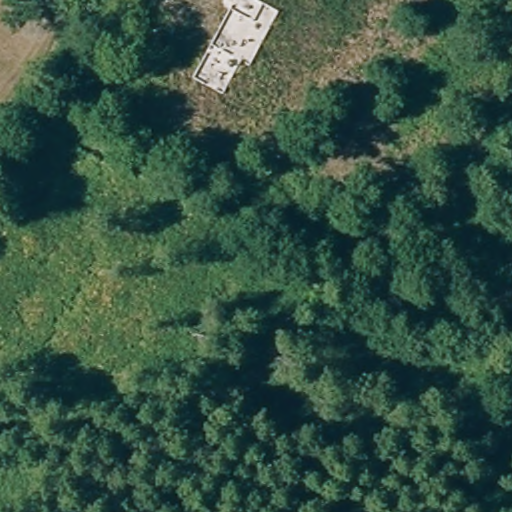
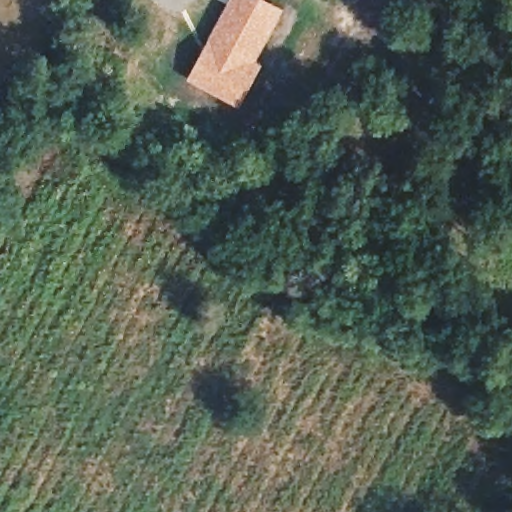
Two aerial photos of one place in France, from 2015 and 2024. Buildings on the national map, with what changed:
new [(188,78),(229,0),(268,0),(283,8),(256,60),(262,63),(240,107),(188,78)]

